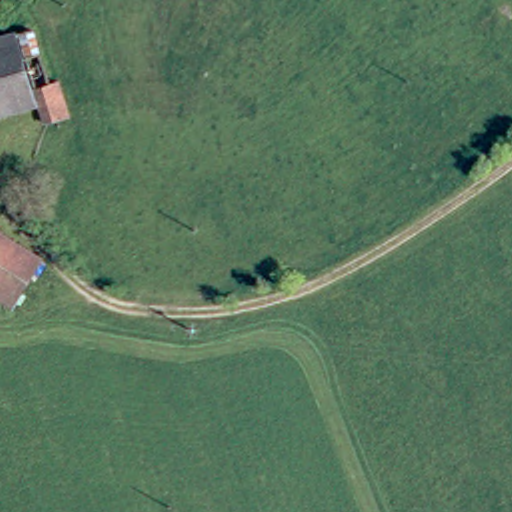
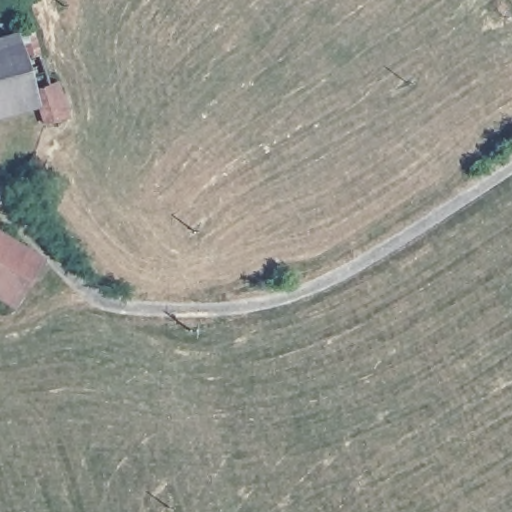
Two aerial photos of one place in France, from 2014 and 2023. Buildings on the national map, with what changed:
unchanged [(27,110),(0,118),(0,41),(28,33),(42,87),(24,92),(27,110)]
unchanged [(64,117),(41,125),(27,110),(24,92),(42,87),(55,83),(64,117)]
unchanged [(0,232),(47,263),(17,315),(0,304),(0,232)]

